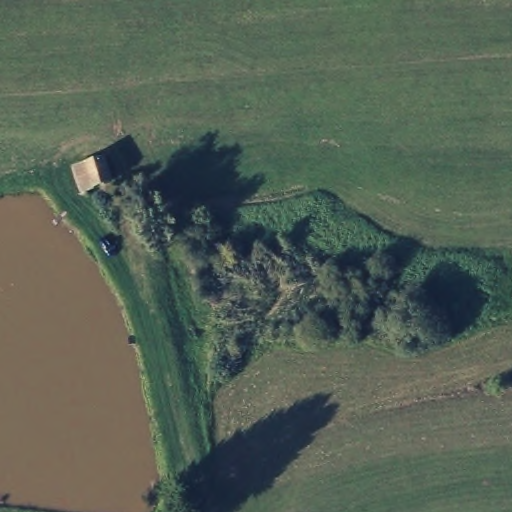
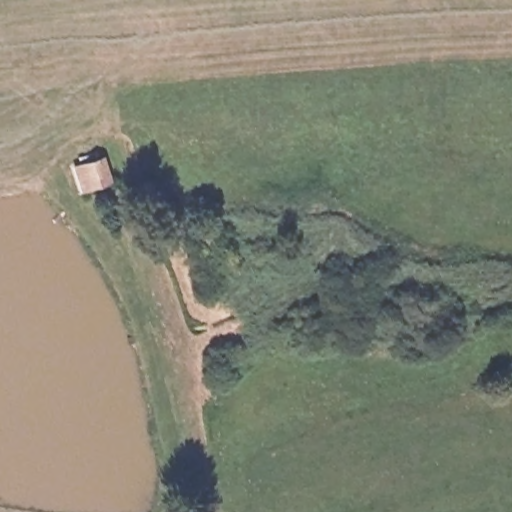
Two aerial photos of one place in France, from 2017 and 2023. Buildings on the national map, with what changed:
unchanged [(70,159),(107,148),(113,179),(82,188),(70,159)]

